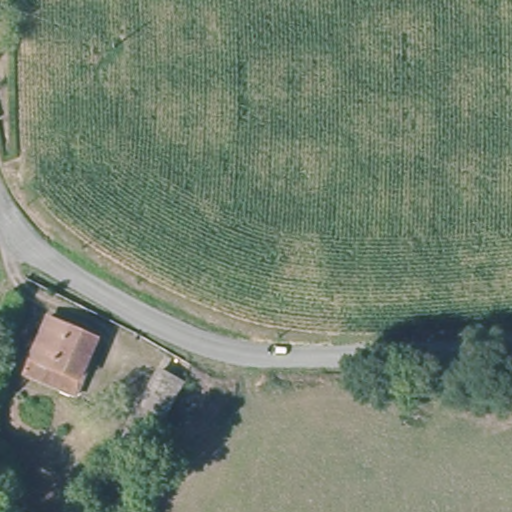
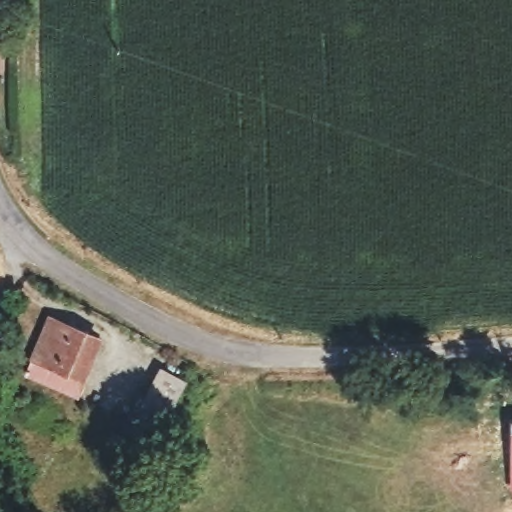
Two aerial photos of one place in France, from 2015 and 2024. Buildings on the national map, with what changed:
unchanged [(105,337),(79,396),(25,373),(50,315),(105,337)]
unchanged [(155,370),(177,382),(163,410),(150,435),(128,424),(137,411),(155,370)]
new [(512,419),(512,492),(507,492),(508,419),(512,419)]

